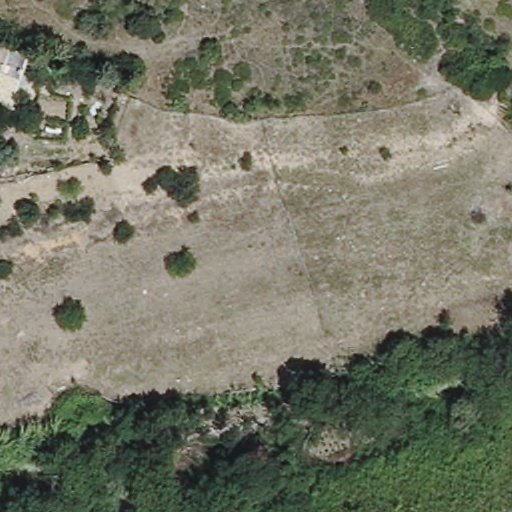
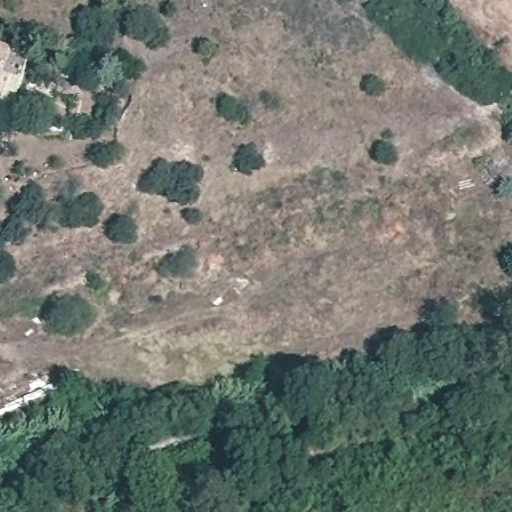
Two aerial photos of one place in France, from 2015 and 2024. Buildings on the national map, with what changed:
unchanged [(34,60),(22,107),(0,100),(0,49),(34,60)]

